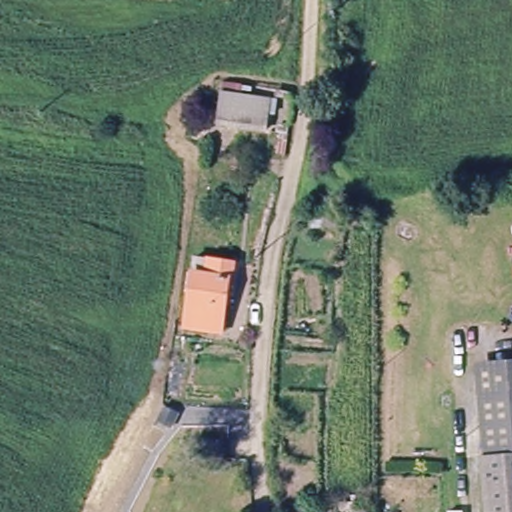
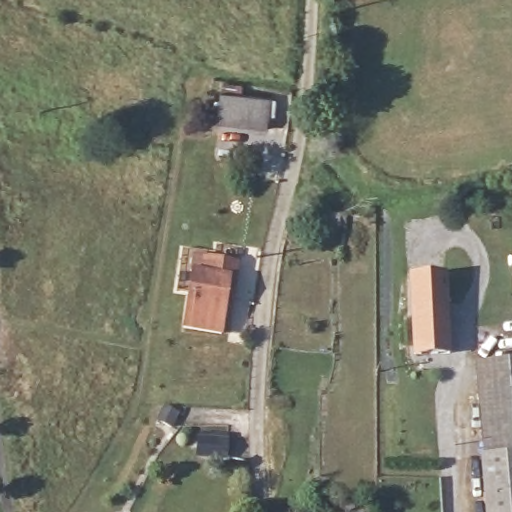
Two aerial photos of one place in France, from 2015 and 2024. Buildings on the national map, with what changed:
unchanged [(265,133),(219,124),(225,93),(271,102),(265,133)]
unchanged [(229,265),(224,298),(221,297),(215,335),(180,330),(190,260),(229,265)]
new [(437,357),(414,358),(410,279),(445,277),(448,352),(448,357),(437,357)]
unchanged [(473,368),(512,363),(512,393),(475,397),(473,368)]
unchanged [(482,466),(480,439),(475,397),(512,393),(512,512),(487,512),(482,466)]
unchanged [(202,451),(202,436),(232,435),(232,451),(202,451)]

